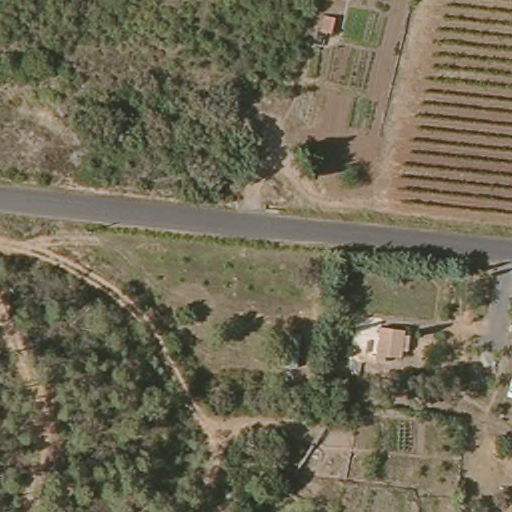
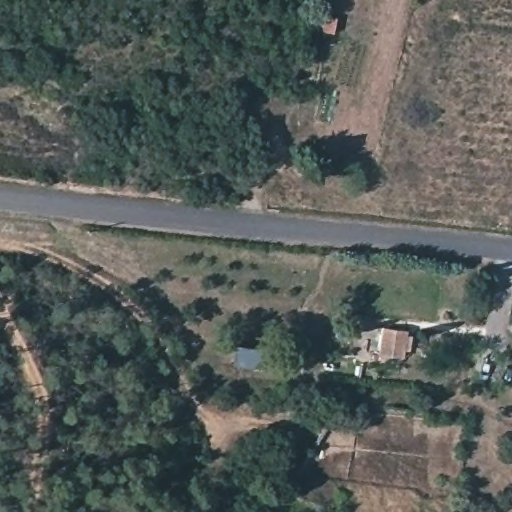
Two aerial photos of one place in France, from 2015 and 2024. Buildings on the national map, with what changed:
unchanged [(404,349),(375,349),(377,323),(404,323),(404,349)]
unchanged [(295,493),(282,489),(290,477),(304,479),(295,493)]

